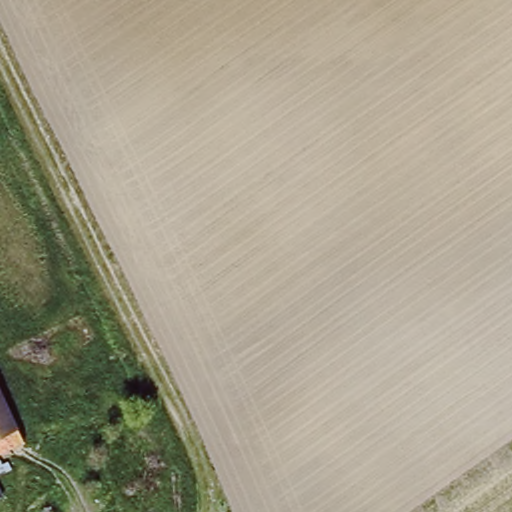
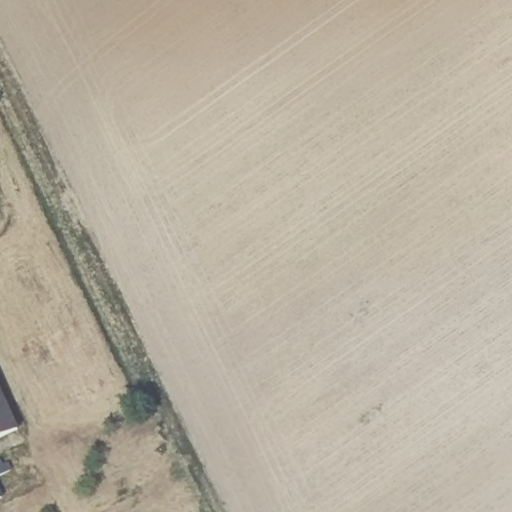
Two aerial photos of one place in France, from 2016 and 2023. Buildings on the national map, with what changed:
unchanged [(20,441),(0,450),(0,396),(20,441)]

